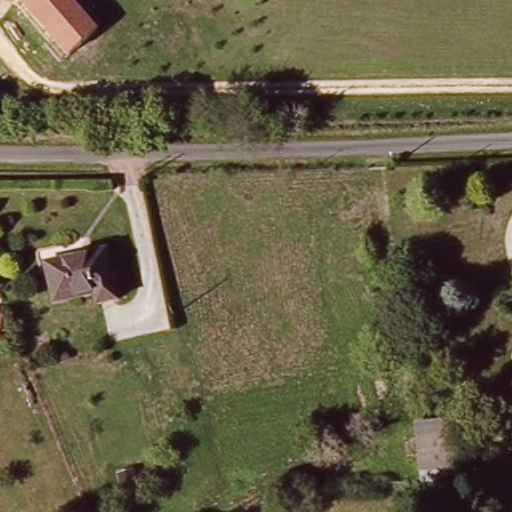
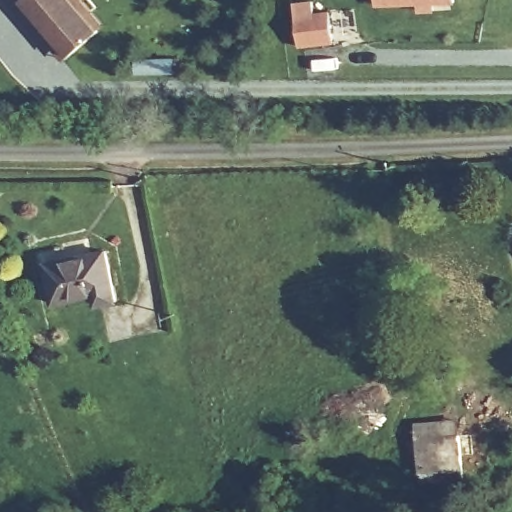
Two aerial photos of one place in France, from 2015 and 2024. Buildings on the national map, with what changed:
unchanged [(65,56),(22,2),(19,0),(70,0),(96,31),(65,56)]
new [(303,0),(312,0),(315,11),(330,9),(335,43),(297,48),(292,2),(303,0)]
new [(454,7),(435,8),(435,13),(415,14),(415,6),(375,7),(375,0),(454,0),(454,7)]
unchanged [(103,255),(109,301),(87,304),(86,290),(52,295),(48,262),(103,255)]
unchanged [(0,335),(0,315),(4,315),(0,335)]
unchanged [(463,462),(423,466),(420,436),(460,432),(463,462)]

